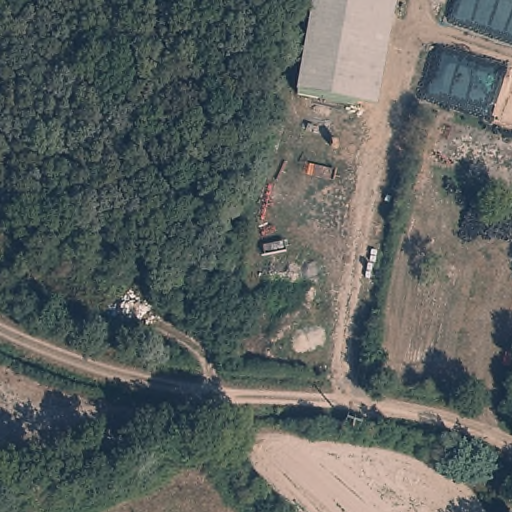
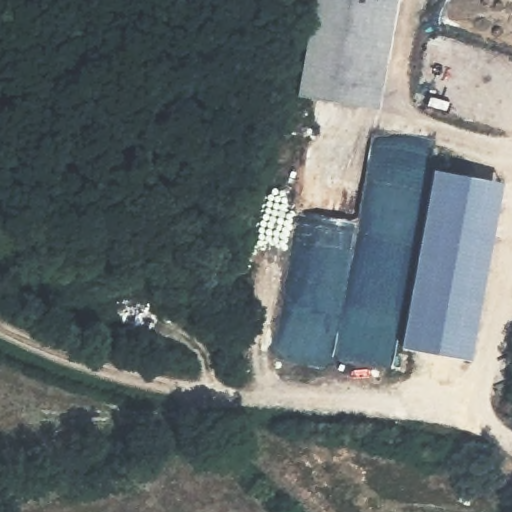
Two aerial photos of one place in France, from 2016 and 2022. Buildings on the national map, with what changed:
unchanged [(292,98),(310,0),(391,0),(370,111),(364,110),(292,98)]
new [(500,181),(471,359),(399,347),(431,169),(500,181)]
unchanged [(512,403),(512,407),(511,407),(512,403)]

